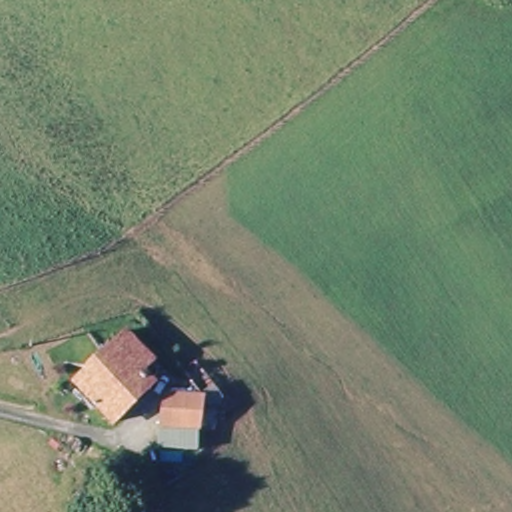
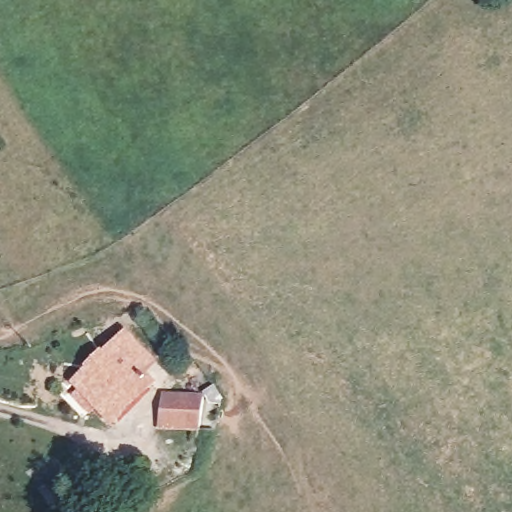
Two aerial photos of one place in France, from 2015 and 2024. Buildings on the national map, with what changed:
unchanged [(76,389),(120,349),(133,337),(170,375),(159,388),(115,429),(76,389)]
unchanged [(204,433),(165,428),(170,394),(205,399),(204,433)]

